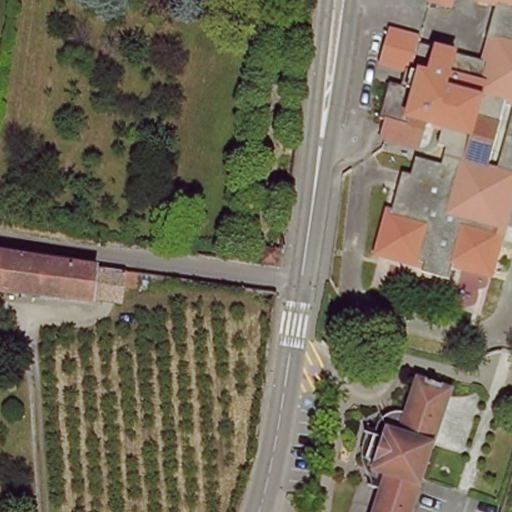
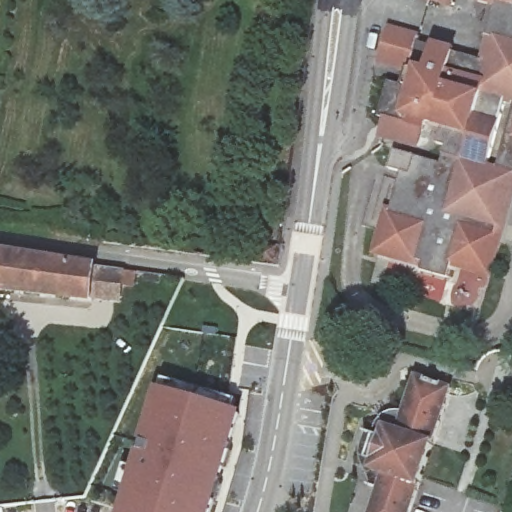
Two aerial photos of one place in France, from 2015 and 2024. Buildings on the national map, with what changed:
unchanged [(456,164),(492,173),(509,179),(484,275),(448,267),(442,284),(414,277),(417,267),(373,256),(390,194),(400,197),(410,160),(436,166),(440,148),(431,145),(435,126),(401,117),(398,124),(369,116),(379,79),(398,82),(402,65),(372,57),(381,24),(413,32),(412,39),(480,58),(490,33),(480,31),(489,0),(512,0),(512,100),(477,90),(456,164)]
unchanged [(512,100),(512,136),(502,134),(512,100)]
unchanged [(492,173),(502,134),(512,136),(512,179),(509,179),(492,173)]
unchanged [(267,270),(253,268),(255,250),(270,252),(267,270)]
unchanged [(104,304),(11,293),(0,291),(0,251),(52,261),(109,268),(104,304)]
unchanged [(379,450),(383,441),(373,419),(413,399),(426,363),(433,365),(460,372),(415,493),(380,486),(367,482),(371,472),(361,469),(370,447),(379,450)]
new [(208,512),(113,512),(150,386),(238,408),(208,512)]
unchanged [(415,493),(408,512),(370,512),(380,486),(415,493)]

